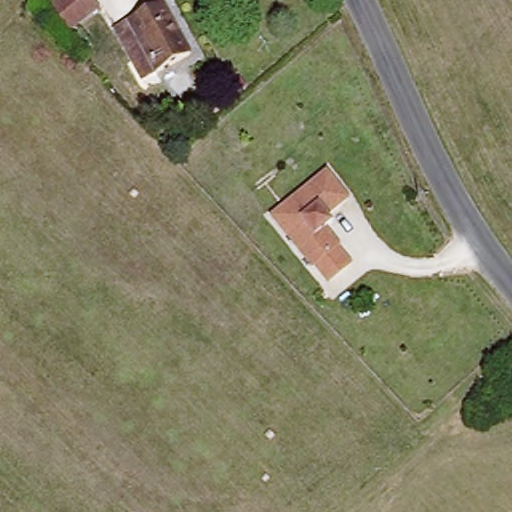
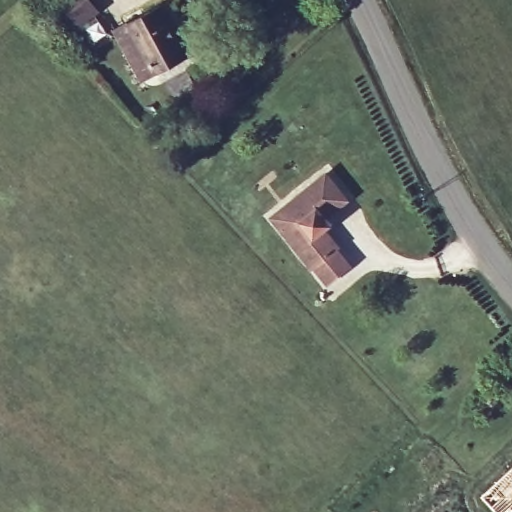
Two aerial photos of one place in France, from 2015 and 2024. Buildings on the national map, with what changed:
unchanged [(57,0),(92,0),(99,7),(76,30),(52,5),(57,0)]
unchanged [(124,31),(152,5),(190,46),(162,70),(150,83),(117,49),(129,36),(124,31)]
unchanged [(315,267),(270,217),(325,170),(347,195),(318,221),(340,245),(352,260),(327,282),(315,267)]
new [(482,495),(512,469),(512,512),(498,512),(482,495)]

